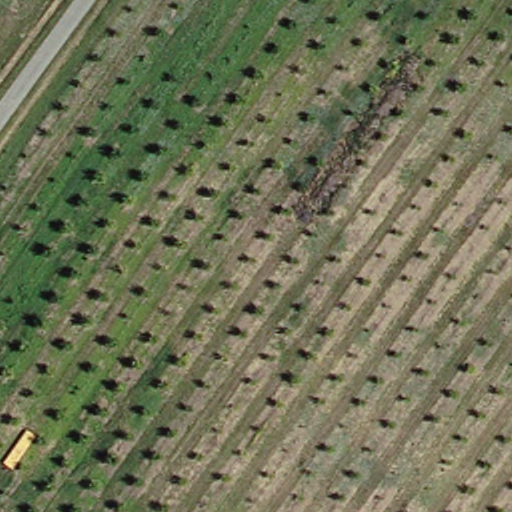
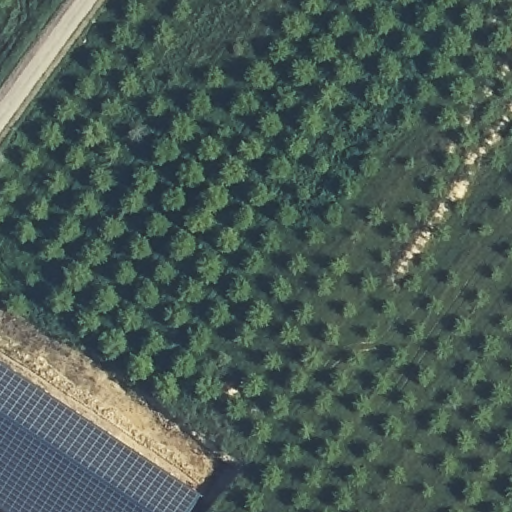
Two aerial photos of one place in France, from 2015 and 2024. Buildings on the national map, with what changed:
new [(203,495),(192,512),(8,512),(0,507),(0,363),(203,495)]

